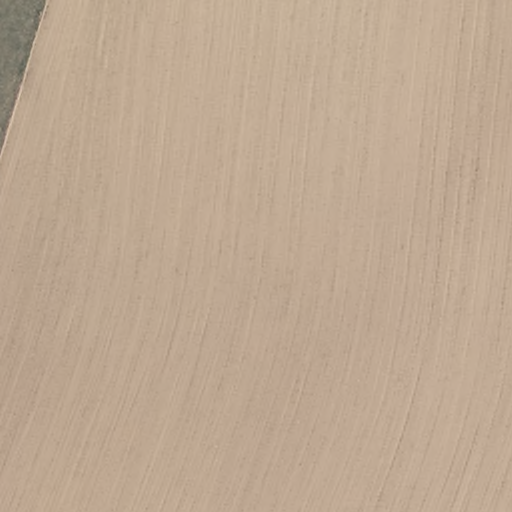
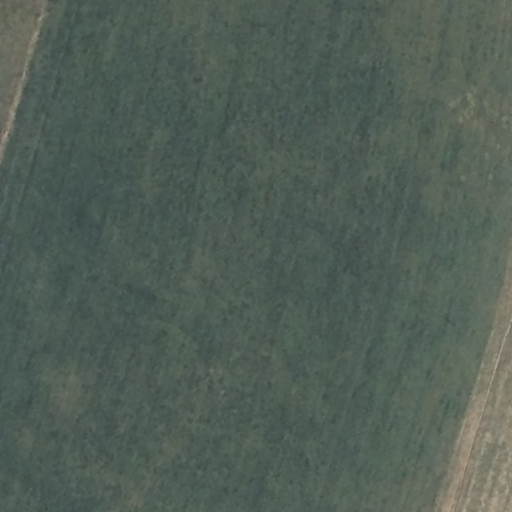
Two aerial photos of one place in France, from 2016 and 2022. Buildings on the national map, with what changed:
[]

